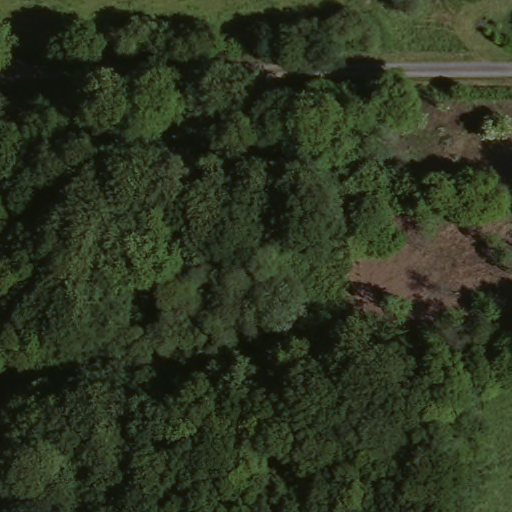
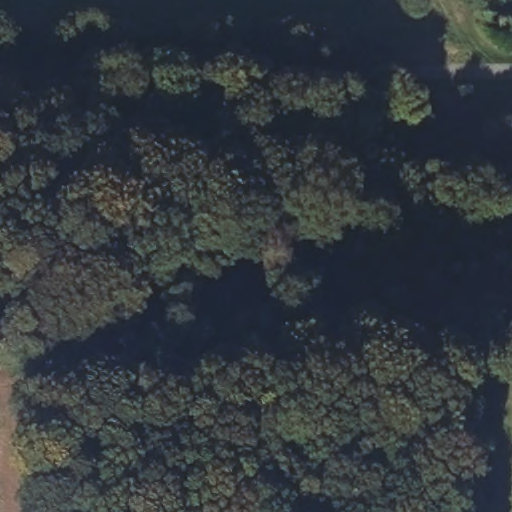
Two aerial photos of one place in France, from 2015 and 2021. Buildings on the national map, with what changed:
[]

